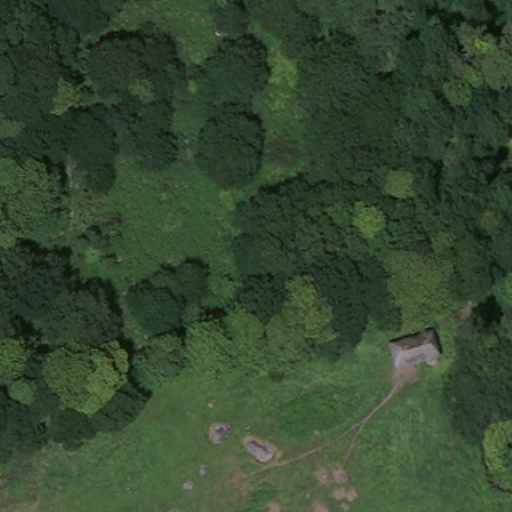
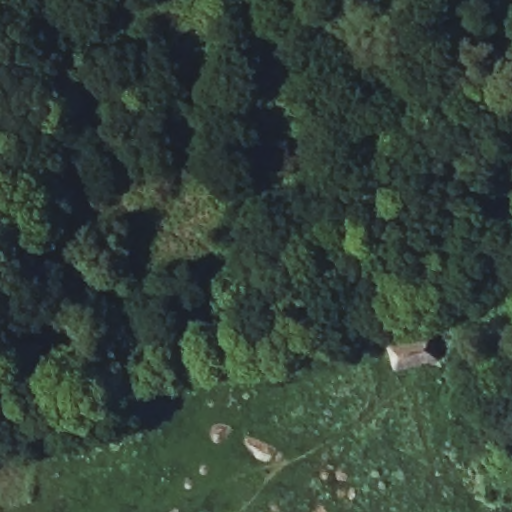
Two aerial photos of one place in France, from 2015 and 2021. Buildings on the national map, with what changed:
unchanged [(395,372),(388,346),(431,332),(440,358),(395,372)]

